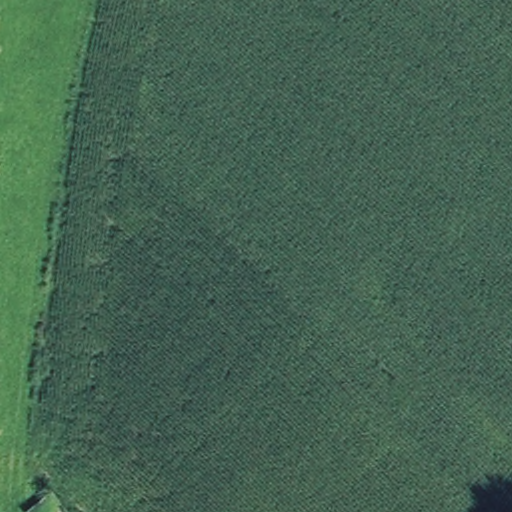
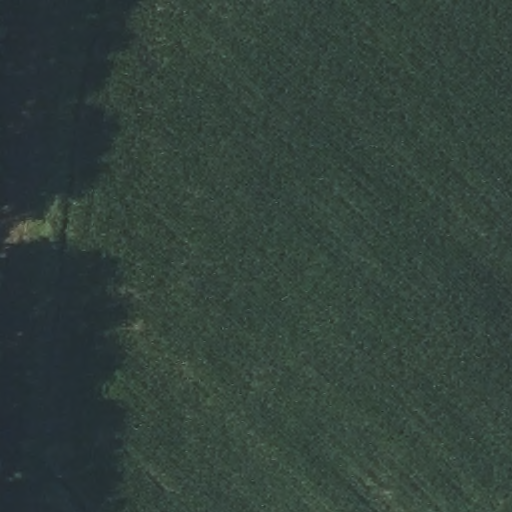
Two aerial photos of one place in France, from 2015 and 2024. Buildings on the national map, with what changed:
unchanged [(72,512),(24,512),(23,511),(54,489),(72,512)]

